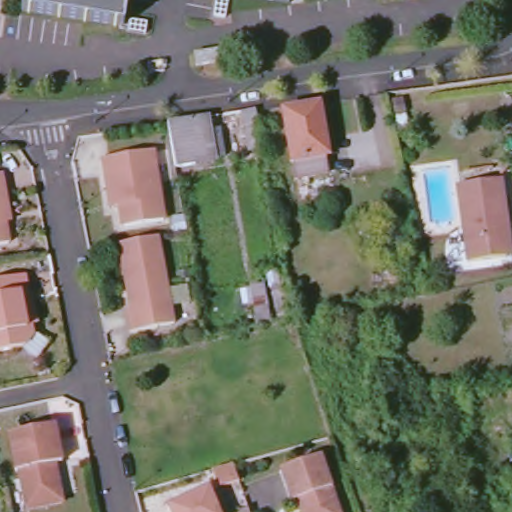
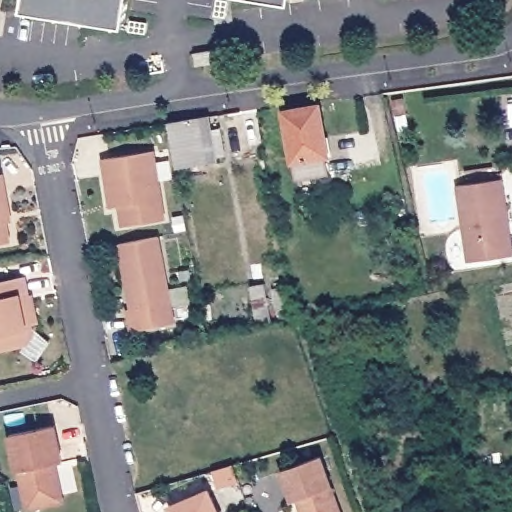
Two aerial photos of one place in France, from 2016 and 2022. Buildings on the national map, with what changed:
unchanged [(18,8),(20,0),(125,0),(120,25),(18,8)]
unchanged [(225,47),(227,60),(211,62),(197,65),(197,64),(195,52),(225,47)]
unchanged [(320,105),(328,156),(325,157),(328,174),(296,179),(293,162),(292,162),(283,111),(320,105)]
unchanged [(243,111),(256,110),(257,115),(261,137),(247,138),(243,111)]
unchanged [(191,118),(207,116),(209,129),(220,128),(225,156),(213,157),(193,160),(193,162),(175,165),(167,121),(168,121),(191,118)]
unchanged [(104,190),(98,160),(149,150),(162,218),(120,226),(117,206),(108,208),(104,190)]
unchanged [(2,215),(7,242),(0,243),(0,173),(7,208),(7,214),(2,215)]
unchanged [(505,256),(467,262),(457,185),(488,180),(501,179),(507,224),(511,256),(505,256)]
unchanged [(182,213),(185,228),(174,230),(171,215),(182,213)]
unchanged [(157,234),(174,321),(130,330),(125,308),(130,307),(117,242),(157,234)]
unchanged [(22,277),(27,303),(30,302),(35,324),(28,325),(30,335),(23,346),(0,351),(0,281),(22,277)]
unchanged [(246,285),(263,280),(265,289),(284,285),(292,317),(254,325),(246,285)]
unchanged [(17,469),(15,469),(7,433),(53,423),(61,460),(54,461),(62,499),(26,507),(17,469)]
unchanged [(297,508),(295,502),(290,504),(278,473),(318,458),(338,512),(301,512),(300,507),(297,508)]
unchanged [(213,488),(208,471),(228,465),(235,482),(213,488)]
unchanged [(204,490),(213,512),(166,512),(164,507),(204,490)]

